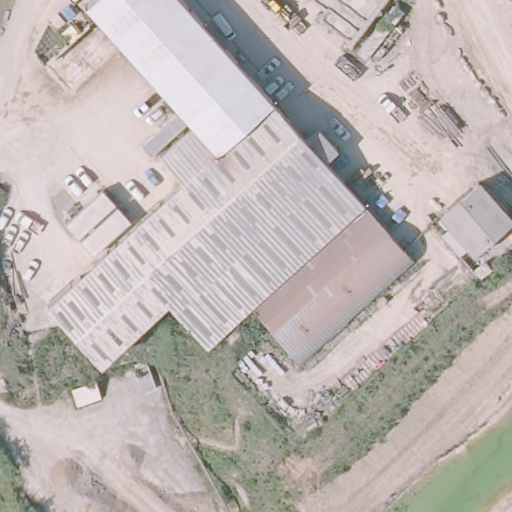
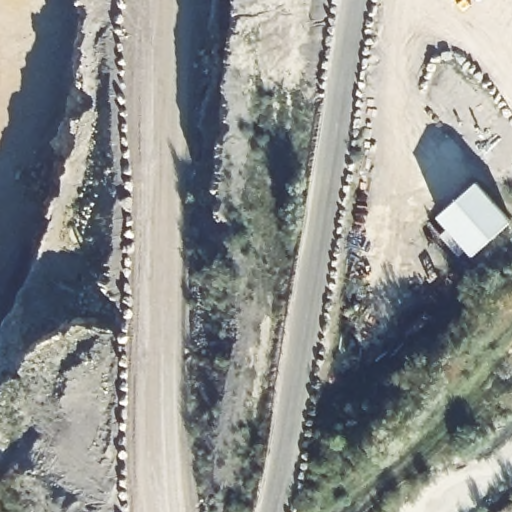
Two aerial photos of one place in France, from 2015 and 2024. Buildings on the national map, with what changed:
demolished [(212,151),(81,2),(84,0),(187,0),(275,100),(362,201),(409,257),(298,358),(252,305),(204,346),(167,299),(100,364),(48,298),(212,151)]
demolished [(357,50),(311,16),(318,5),(313,0),(396,0),(357,50)]
unchanged [(438,225),(471,185),(510,217),(478,256),(438,225)]

